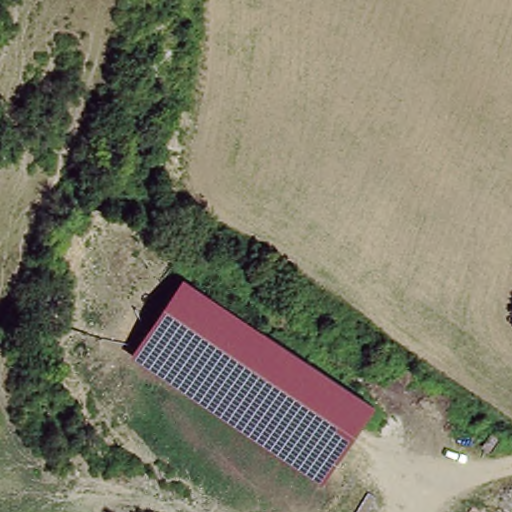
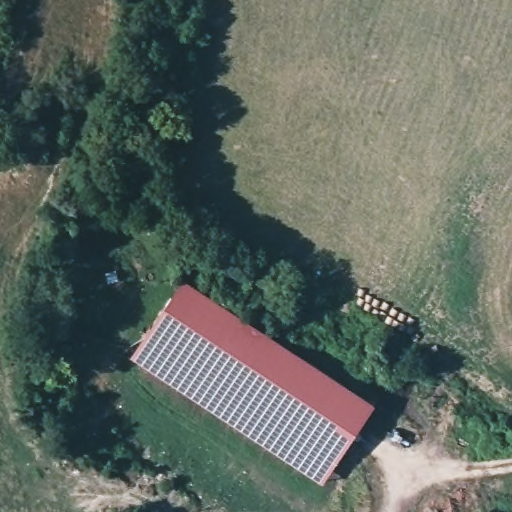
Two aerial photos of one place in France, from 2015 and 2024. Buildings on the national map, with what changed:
unchanged [(185,279),(372,405),(323,479),(134,356),(185,279)]

